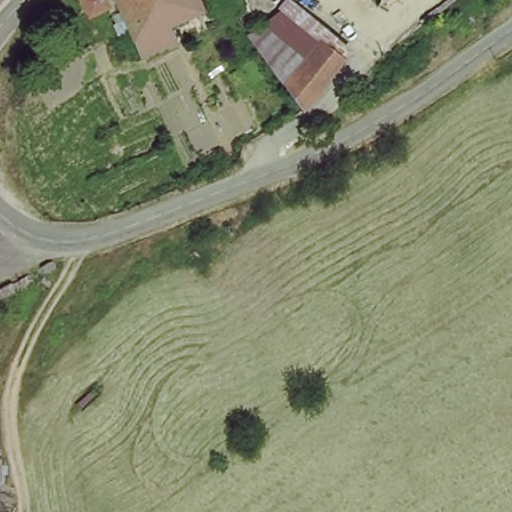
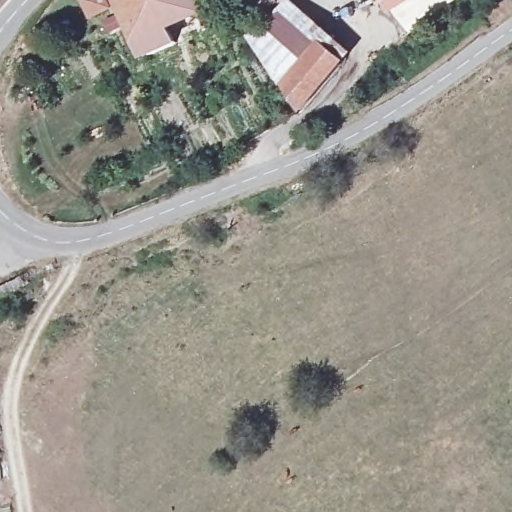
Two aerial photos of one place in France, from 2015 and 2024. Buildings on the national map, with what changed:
unchanged [(84,5),(95,0),(98,0),(105,16),(90,22),(84,5)]
unchanged [(170,47),(138,60),(120,10),(117,0),(191,0),(197,15),(165,32),(170,47)]
unchanged [(245,35),(285,0),(292,0),(356,55),(301,116),(245,35)]
unchanged [(390,0),(384,4),(381,0),(390,0)]

